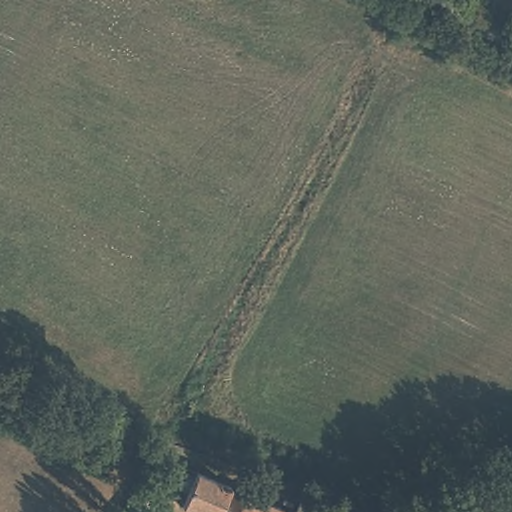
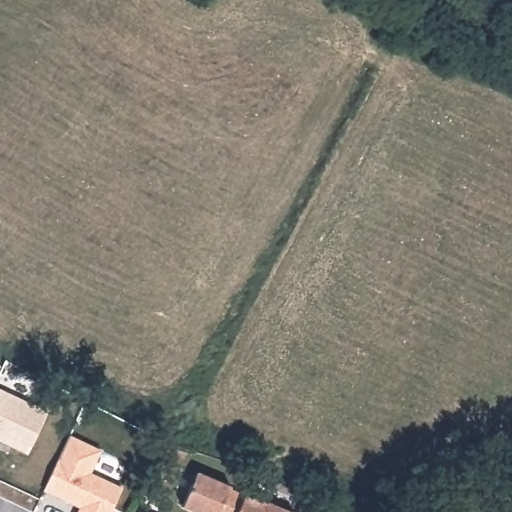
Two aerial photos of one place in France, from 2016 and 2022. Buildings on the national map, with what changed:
new [(29,457),(0,443),(0,390),(50,413),(29,457)]
new [(72,437),(103,452),(92,475),(124,490),(114,512),(81,512),(82,509),(46,492),(72,437)]
unchanged [(183,507),(197,472),(232,487),(231,489),(260,502),(261,500),(290,512),(196,512),(183,507)]

